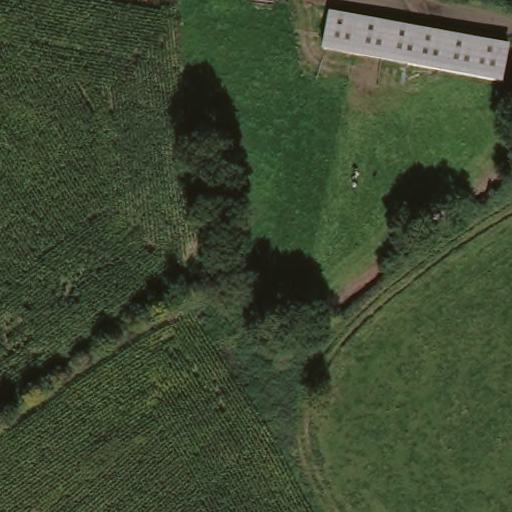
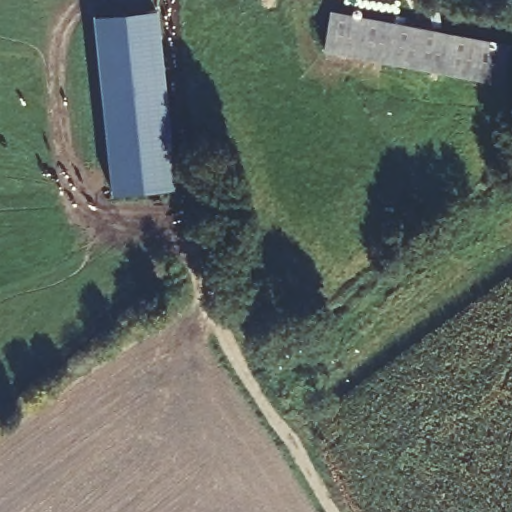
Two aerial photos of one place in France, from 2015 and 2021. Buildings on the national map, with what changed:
new [(160,7),(180,186),(112,190),(96,10),(160,7)]
unchanged [(505,84),(323,49),(330,10),(512,44),(505,84)]

